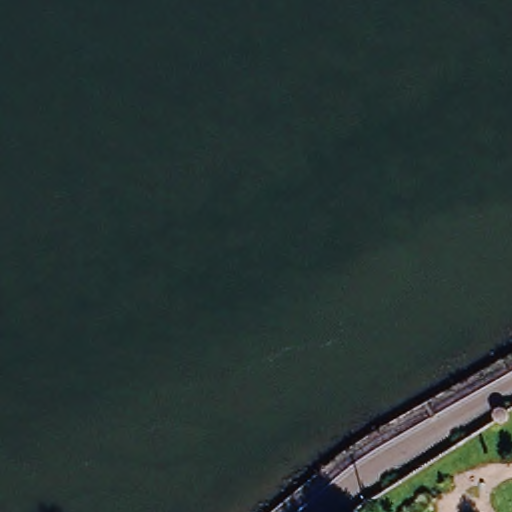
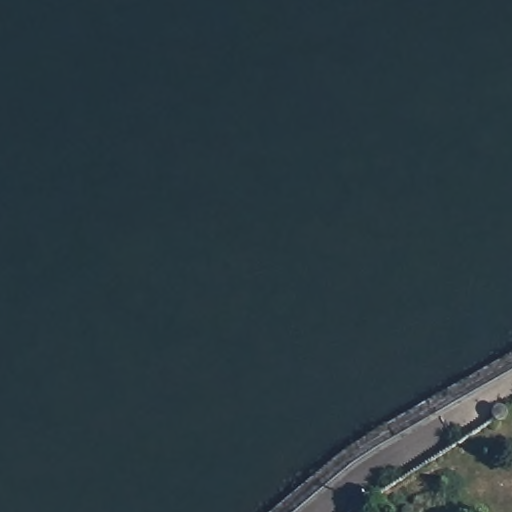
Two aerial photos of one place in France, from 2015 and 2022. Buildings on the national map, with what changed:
[]

